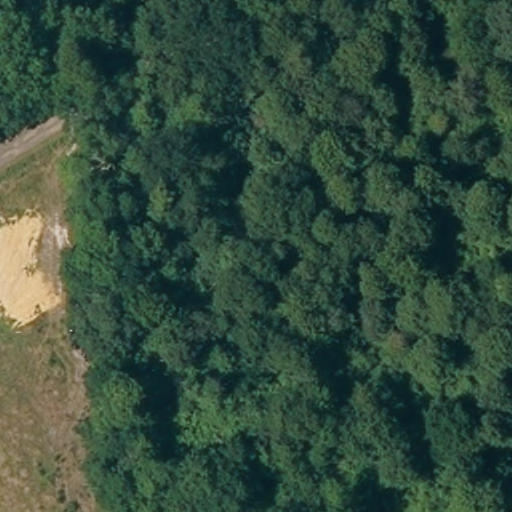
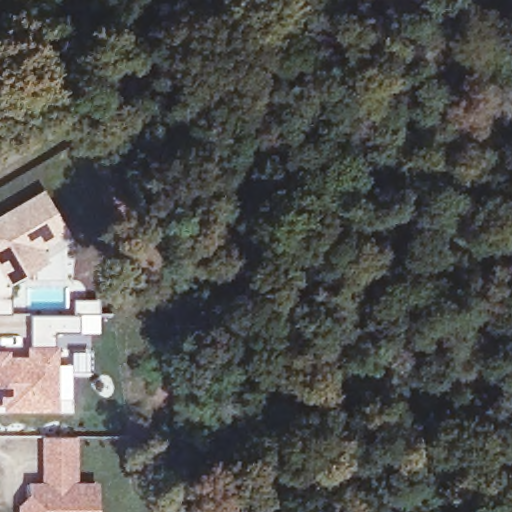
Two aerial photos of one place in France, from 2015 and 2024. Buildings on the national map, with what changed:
new [(68,232),(41,249),(49,264),(11,285),(11,313),(0,313),(0,215),(43,189),(68,232)]
new [(73,314),(74,299),(99,299),(98,314),(79,314),(78,331),(55,333),(54,346),(58,346),(57,411),(2,411),(3,406),(0,406),(0,350),(10,349),(10,357),(26,357),(26,346),(32,346),(32,314),(73,314)]
new [(78,436),(77,481),(98,481),(98,512),(17,512),(17,505),(27,494),(27,482),(41,482),(41,437),(78,436)]

